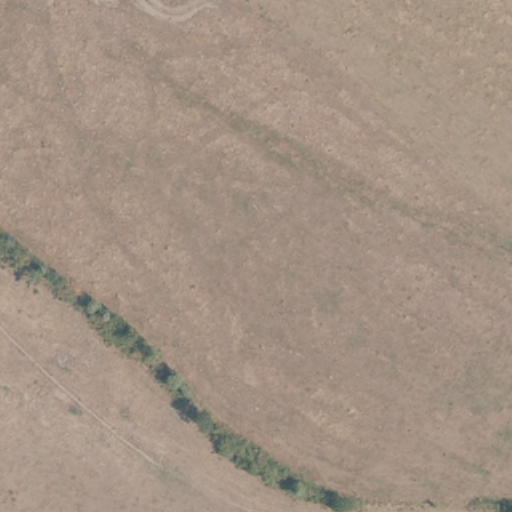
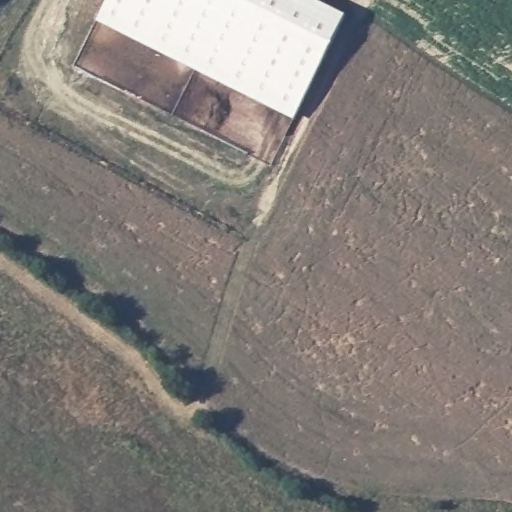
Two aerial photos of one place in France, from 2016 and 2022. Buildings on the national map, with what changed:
new [(292,121),(94,22),(104,0),(312,0),(343,15),(292,121)]

